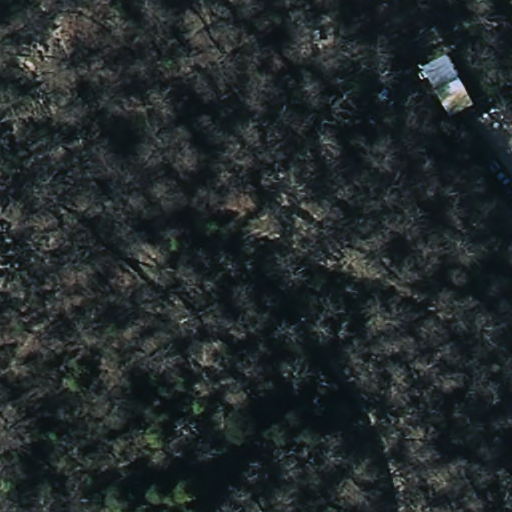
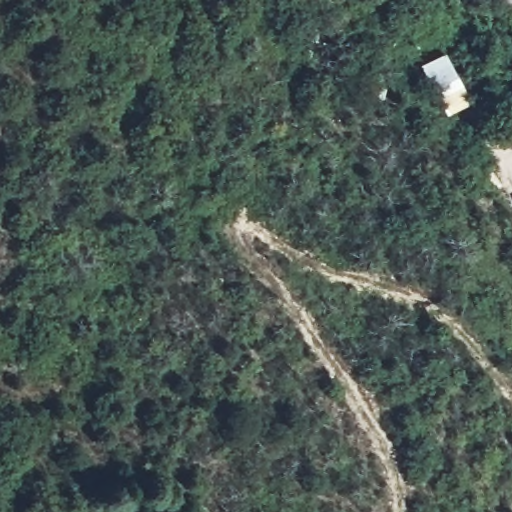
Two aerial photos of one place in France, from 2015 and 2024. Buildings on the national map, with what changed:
unchanged [(449,51),(475,104),(446,119),(419,66),(449,51)]

